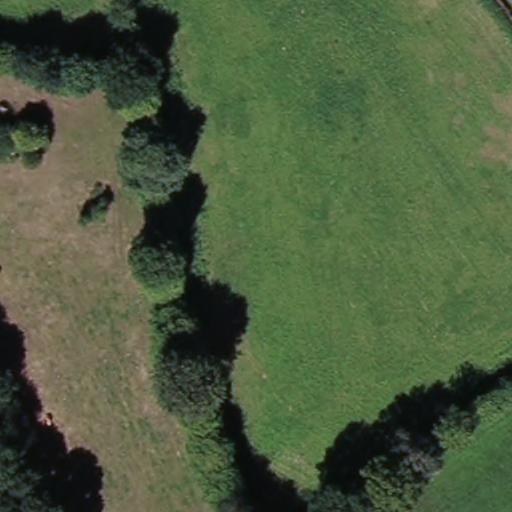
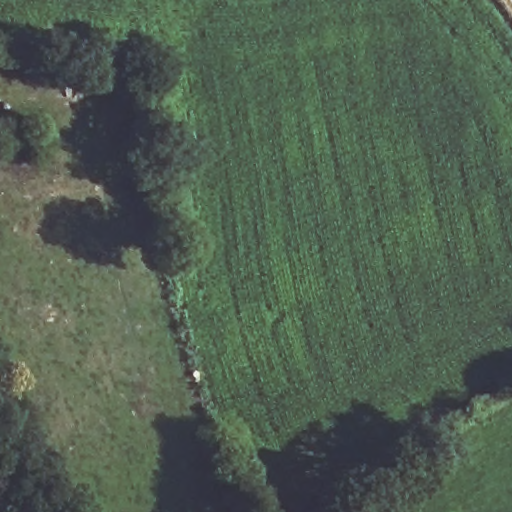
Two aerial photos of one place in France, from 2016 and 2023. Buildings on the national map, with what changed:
[]

